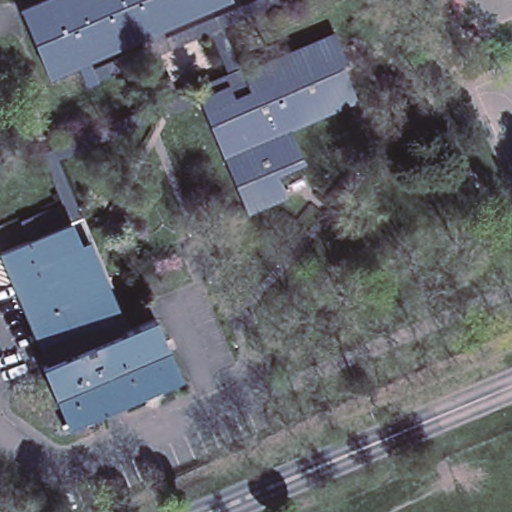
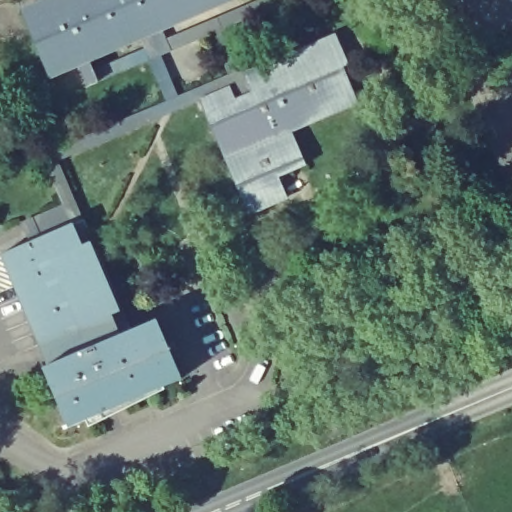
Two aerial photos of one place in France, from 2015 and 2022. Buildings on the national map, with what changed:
unchanged [(140,39),(76,66),(77,70),(50,82),(18,12),(47,0),(231,0),(232,0),(162,30),(172,51),(150,61),(140,39)]
unchanged [(347,66),(342,70),(359,103),(289,135),(304,167),(277,178),(287,201),(249,217),(202,111),(232,98),(227,87),(227,70),(237,66),(240,72),(331,34),(347,66)]
unchanged [(77,70),(90,65),(96,83),(84,88),(77,70)]
unchanged [(62,427),(39,369),(45,367),(0,259),(0,255),(26,245),(19,226),(64,208),(71,227),(84,222),(130,332),(151,323),(175,382),(62,427)]

